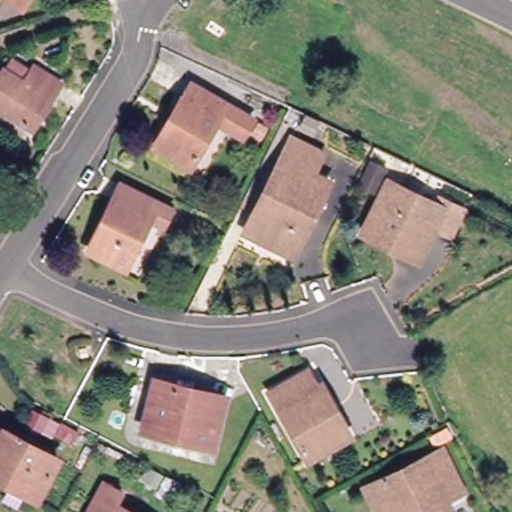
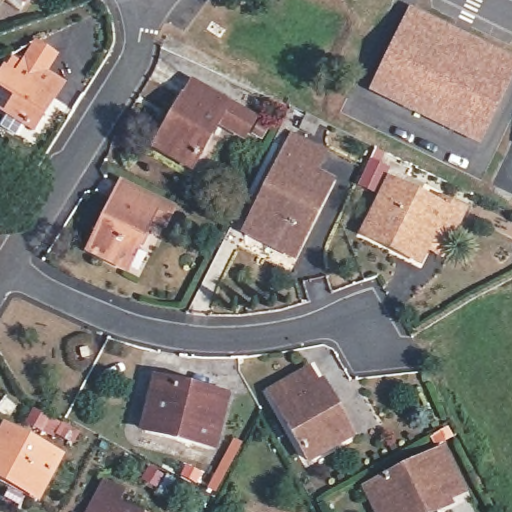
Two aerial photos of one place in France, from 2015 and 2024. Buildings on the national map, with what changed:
unchanged [(16,0),(23,0),(21,4),(16,0)]
new [(512,58),(512,75),(478,146),(366,92),(407,7),(512,58)]
unchanged [(60,84),(30,128),(0,108),(0,76),(5,69),(14,59),(21,64),(31,70),(34,67),(60,84)]
unchanged [(250,121),(240,138),(215,123),(188,167),(152,145),(181,97),(184,99),(191,85),(250,121)]
unchanged [(321,160),(312,178),(330,187),(291,262),(244,237),(261,204),(291,144),(321,160)]
unchanged [(164,224),(150,219),(125,268),(89,249),(114,200),(122,187),(170,210),(164,224)]
unchanged [(395,258),(396,254),(376,245),(375,248),(356,239),(383,187),(413,202),(430,210),(433,203),(458,215),(446,241),(430,233),(413,267),(395,258)]
unchanged [(332,404),(340,419),(350,438),(307,462),(270,396),(308,374),(317,389),(322,386),(332,404)]
unchanged [(224,398),(211,448),(141,430),(152,381),(224,398)]
unchanged [(17,491),(0,482),(0,454),(1,452),(0,451),(0,432),(10,437),(62,465),(41,504),(17,491)]
unchanged [(357,489),(368,484),(436,451),(456,491),(440,499),(442,504),(425,512),(369,512),(357,489)]
unchanged [(102,484),(120,493),(112,506),(125,512),(88,512),(102,484)]

